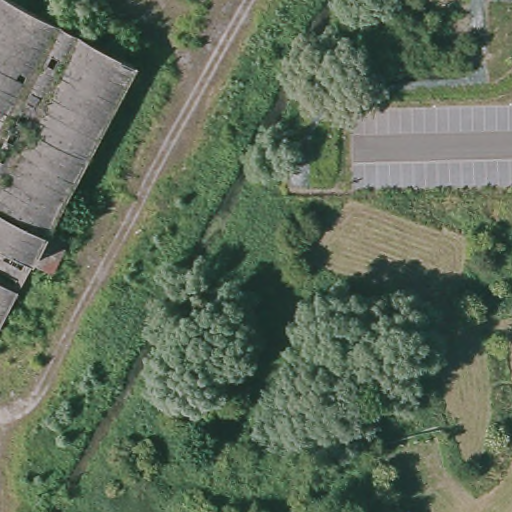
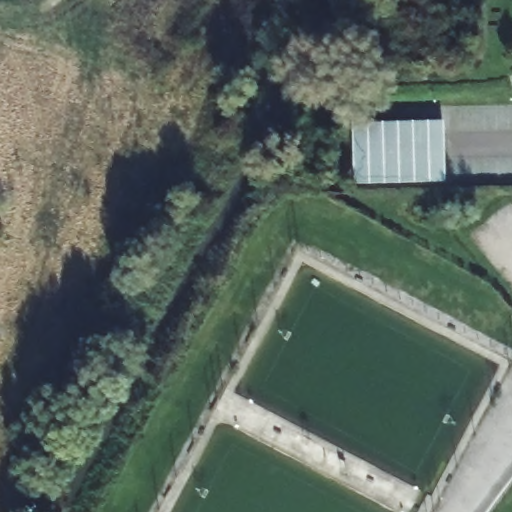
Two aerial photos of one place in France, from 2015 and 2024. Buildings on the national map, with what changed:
demolished [(0,314),(0,0),(3,0),(129,66),(44,230),(26,264),(0,314)]
new [(443,121),(445,182),(353,185),(352,124),(443,121)]

